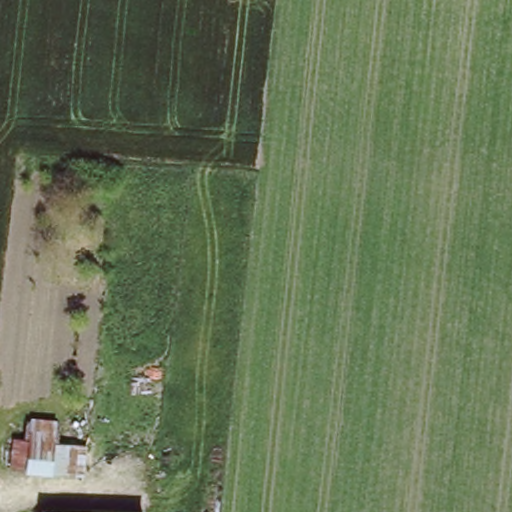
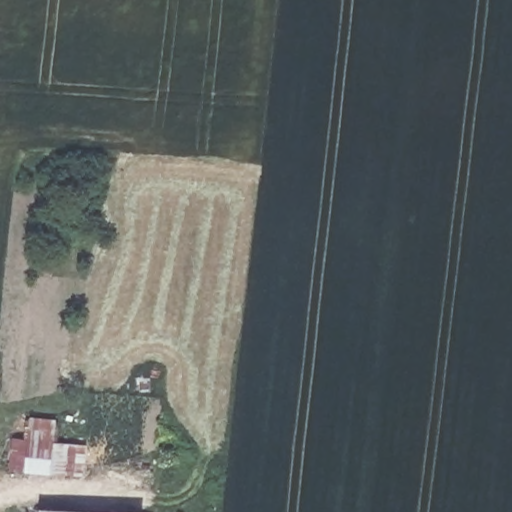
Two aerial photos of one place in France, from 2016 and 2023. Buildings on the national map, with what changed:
unchanged [(31,473),(11,470),(13,437),(32,438),(33,416),(56,418),(54,440),(89,441),(84,477),(31,473)]
unchanged [(121,512),(45,512),(45,507),(121,512)]

